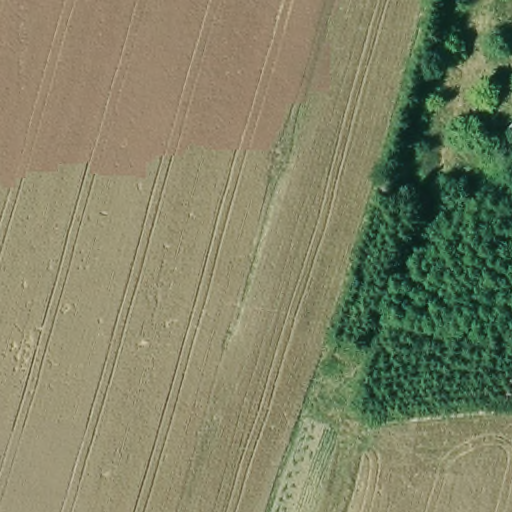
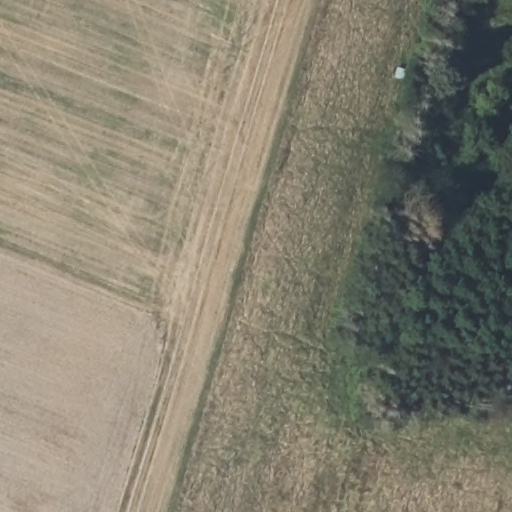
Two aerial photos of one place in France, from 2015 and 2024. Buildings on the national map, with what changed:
unchanged [(498,145),(512,129),(512,155),(498,145)]

